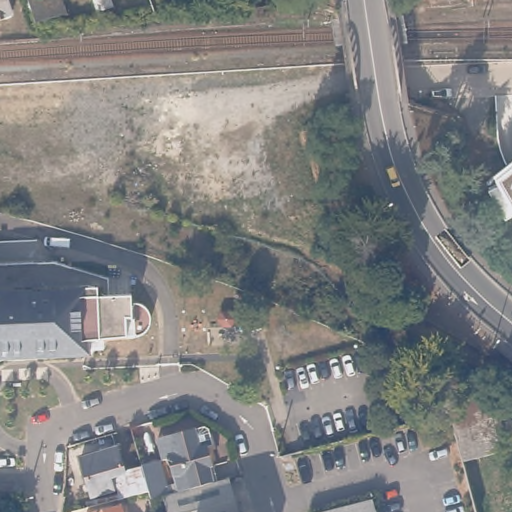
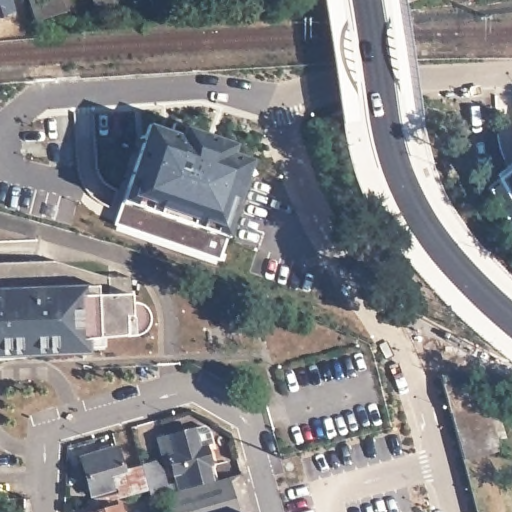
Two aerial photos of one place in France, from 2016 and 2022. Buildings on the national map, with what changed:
unchanged [(3,0),(6,10),(0,12),(0,0),(3,0)]
unchanged [(39,20),(32,0),(63,0),(69,16),(39,20)]
unchanged [(101,12),(96,0),(112,0),(115,8),(101,12)]
new [(220,261),(115,225),(122,202),(147,126),(180,137),(184,127),(236,144),(234,154),(254,160),(226,238),(220,261)]
unchanged [(486,196),(503,187),(496,179),(512,168),(512,219),(501,222),(486,196)]
unchanged [(0,347),(0,267),(50,263),(102,277),(104,295),(124,293),(125,301),(129,300),(131,300),(133,301),(136,302),(139,302),(140,304),(142,306),(143,307),(144,308),(145,311),(145,313),(145,315),(145,316),(145,318),(144,320),(143,322),(141,325),(140,326),(139,327),(136,328),(135,328),(133,329),(131,330),(80,334),(81,343),(0,347)]
demolished [(483,400),(496,452),(463,460),(450,413),(440,377),(483,400)]
unchanged [(180,492),(171,458),(165,460),(163,452),(160,440),(165,438),(197,428),(202,447),(209,446),(215,467),(211,467),(215,482),(183,492),(180,492)]
unchanged [(167,496),(152,500),(150,490),(115,498),(113,490),(94,495),(82,457),(118,448),(125,471),(143,467),(160,462),(166,487),(173,486),(175,493),(180,492),(183,492),(215,482),(229,479),(237,512),(172,512),(167,496)]
demolished [(374,512),(329,512),(371,501),(374,512)]
unchanged [(123,509),(124,512),(112,512),(123,509)]

